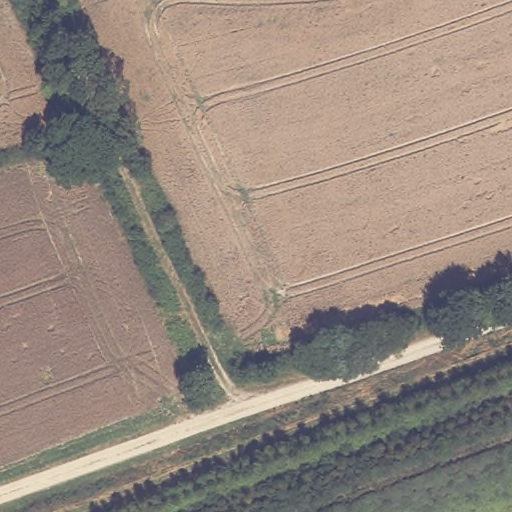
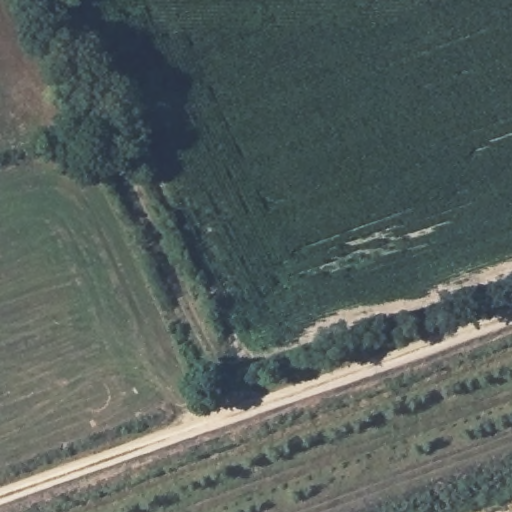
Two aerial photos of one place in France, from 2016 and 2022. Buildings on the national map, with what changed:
[]

